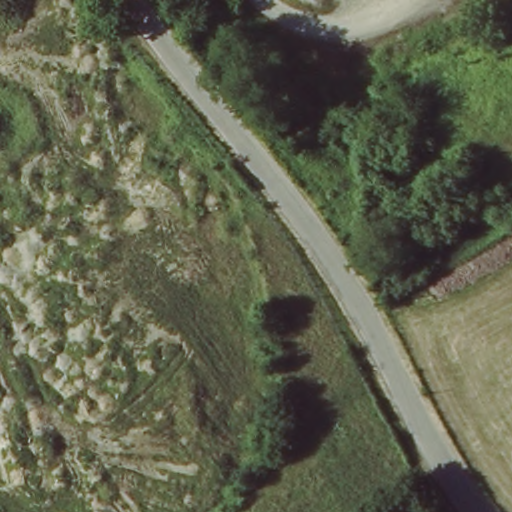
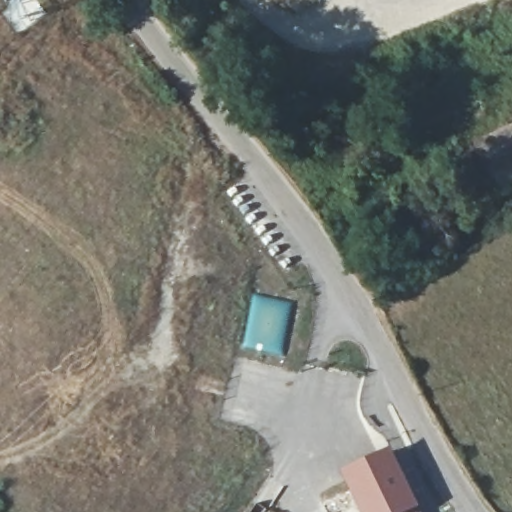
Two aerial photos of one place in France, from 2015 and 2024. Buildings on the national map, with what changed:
new [(399,444),(427,512),(359,512),(341,472),(399,444)]

